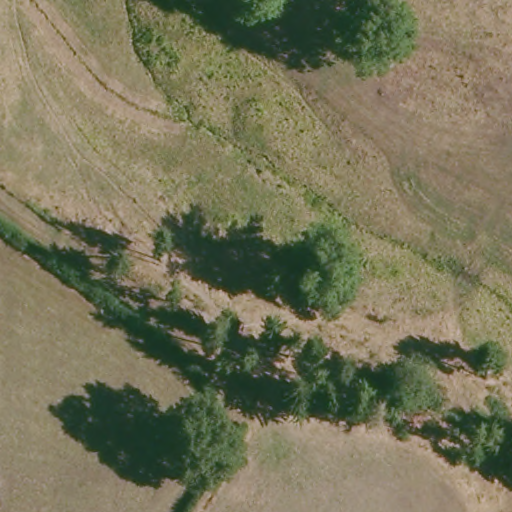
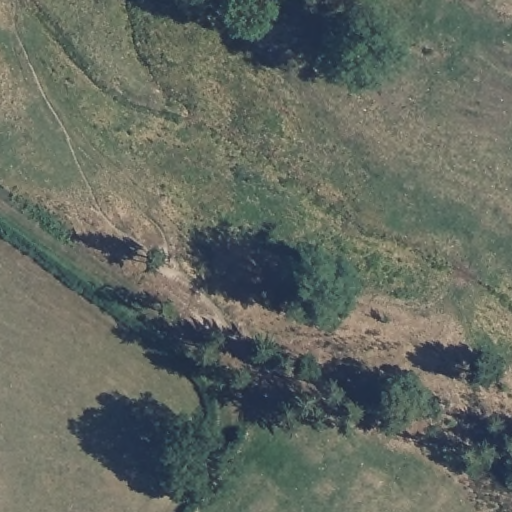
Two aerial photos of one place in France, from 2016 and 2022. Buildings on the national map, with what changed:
[]

